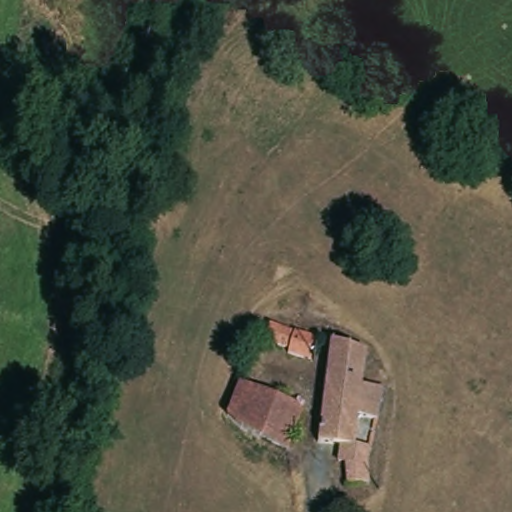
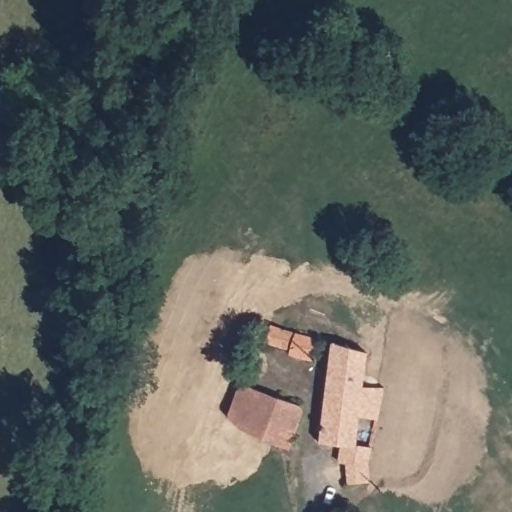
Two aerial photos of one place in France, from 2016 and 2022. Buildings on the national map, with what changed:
unchanged [(272,325),(320,341),(315,367),(290,360),(292,352),(266,346),(272,325)]
unchanged [(371,347),(367,381),(387,383),(383,418),(376,467),(376,472),(376,480),(345,477),(346,459),(337,458),(340,439),(320,436),(334,340),(339,341),(371,347)]
unchanged [(273,396),(263,435),(257,433),(227,420),(237,385),(273,396)]
unchanged [(298,404),(301,408),(291,446),(263,435),(273,396),(298,404)]

